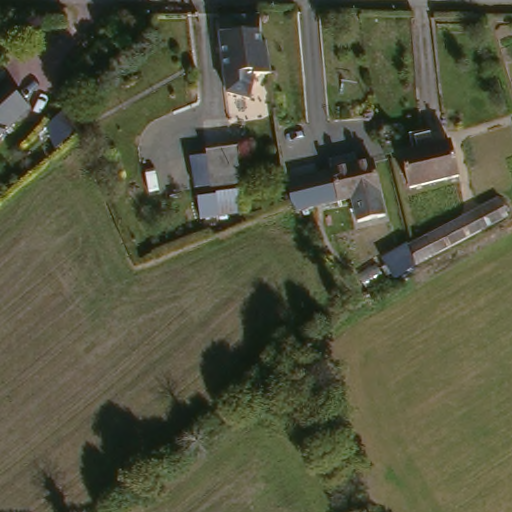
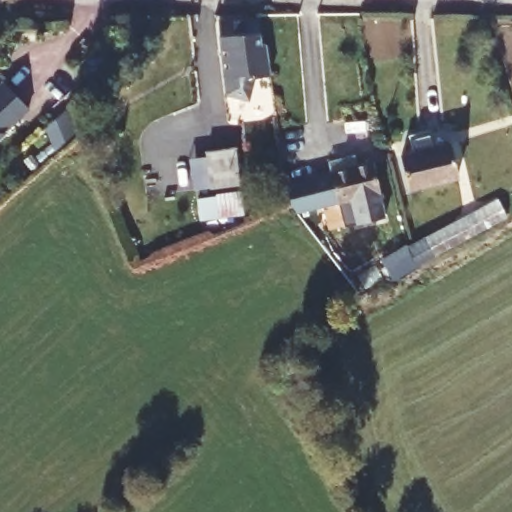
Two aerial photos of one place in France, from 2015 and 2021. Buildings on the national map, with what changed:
unchanged [(266,41),(272,40),(273,52),(229,57),(225,17),(265,14),(266,41)]
unchanged [(273,52),(276,71),(260,74),(258,97),(231,91),(229,57),(273,52)]
unchanged [(0,91),(10,82),(34,111),(0,140),(0,91)]
unchanged [(450,145),(457,177),(408,189),(402,155),(450,145)]
unchanged [(232,149),(239,185),(210,189),(205,154),(232,149)]
unchanged [(295,202),(291,177),(334,167),(332,157),(359,151),(362,161),(376,159),(386,213),(358,219),(353,195),(301,210),(295,202)]
unchanged [(242,215),(220,218),(216,196),(240,193),(242,215)]
unchanged [(510,222),(392,282),(375,257),(500,196),(510,222)]

